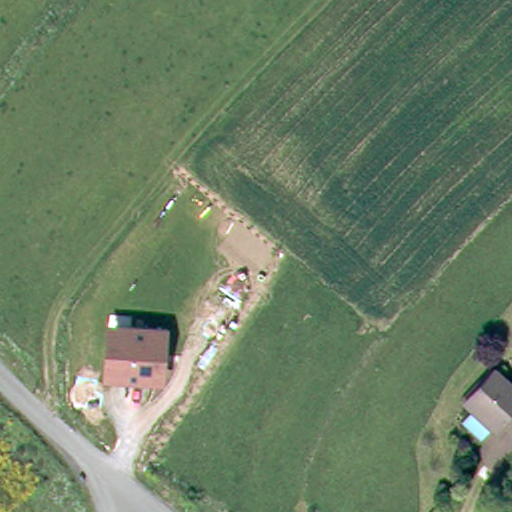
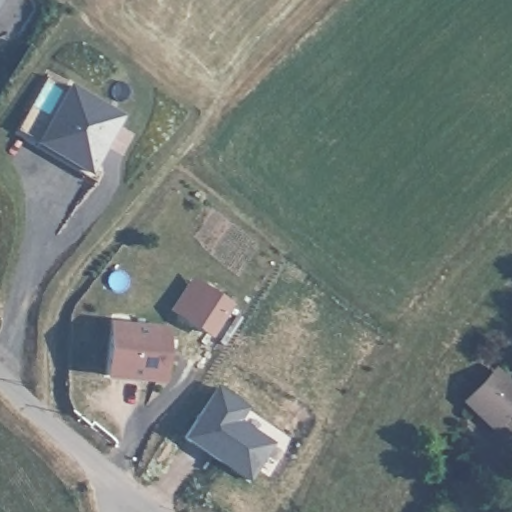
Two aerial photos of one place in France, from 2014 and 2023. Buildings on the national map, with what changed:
new [(0,0),(3,0),(0,5),(0,0)]
new [(67,82),(125,115),(90,176),(34,142),(67,82)]
new [(192,277),(233,303),(210,337),(168,311),(192,277)]
unchanged [(107,322),(168,326),(163,381),(103,376),(107,322)]
unchanged [(507,402),(491,416),(466,389),(495,362),(512,381),(512,408),(507,402)]
new [(182,437),(215,387),(247,407),(239,421),(275,442),(248,482),(182,437)]

